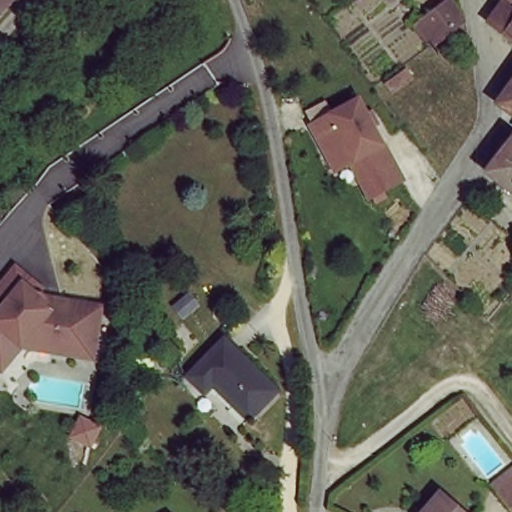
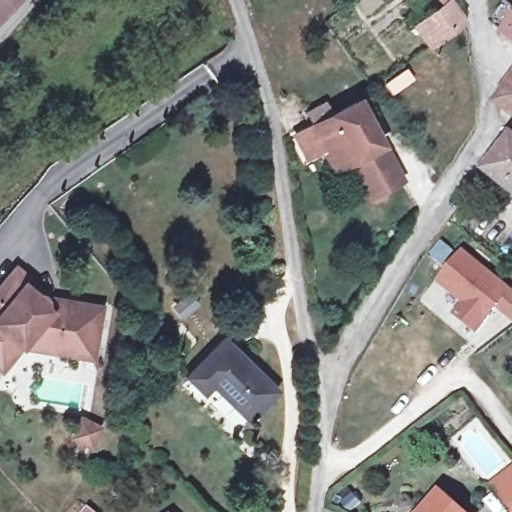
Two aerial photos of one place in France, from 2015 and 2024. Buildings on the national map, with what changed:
unchanged [(0,5),(0,0),(5,0),(0,5)]
unchanged [(450,4),(464,19),(464,23),(434,39),(420,20),(450,4)]
unchanged [(411,80),(386,95),(379,82),(403,66),(411,80)]
unchanged [(502,106),(512,91),(512,115),(502,106)]
unchanged [(381,143),(386,142),(401,179),(365,195),(353,162),(333,171),(309,125),(358,98),(381,143)]
unchanged [(507,126),(512,119),(512,131),(507,126)]
unchanged [(499,165),(509,152),(510,148),(512,146),(512,197),(490,178),(499,165)]
new [(497,310),(477,335),(452,315),(460,304),(435,283),(462,249),(512,289),(512,323),(497,310)]
unchanged [(102,304),(88,359),(19,347),(0,366),(0,283),(16,265),(46,293),(102,304)]
unchanged [(279,388),(250,416),(215,380),(203,392),(186,374),(225,334),(279,388)]
unchanged [(496,486),(512,474),(512,508),(496,486)]
unchanged [(426,512),(442,495),(460,512),(426,512)]

